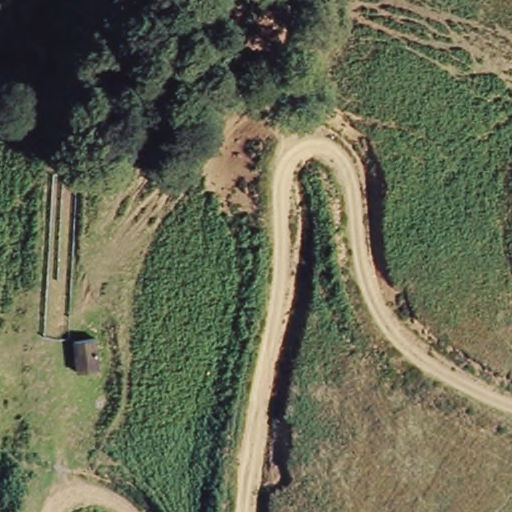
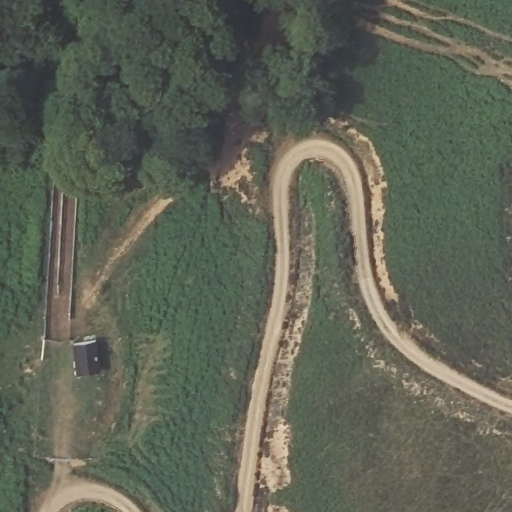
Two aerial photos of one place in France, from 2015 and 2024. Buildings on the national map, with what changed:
unchanged [(96,346),(100,378),(80,383),(75,350),(96,346)]

